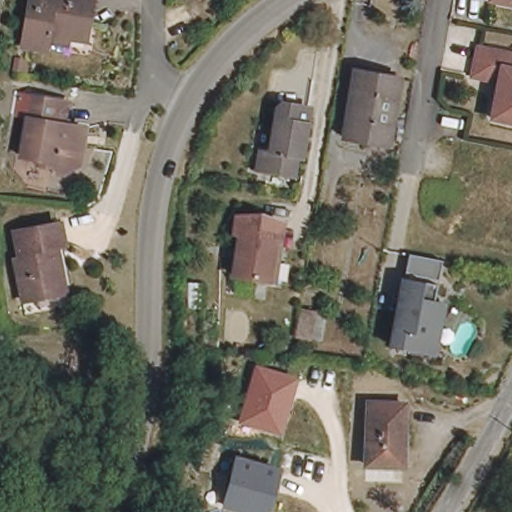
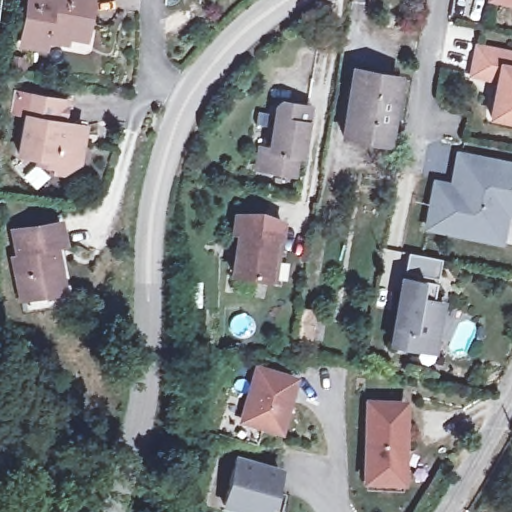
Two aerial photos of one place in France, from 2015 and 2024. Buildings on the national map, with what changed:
unchanged [(45,41),(45,48),(22,45),(29,0),(90,0),(85,36),(68,34),(66,45),(45,41)]
unchanged [(496,0),(512,0),(512,3),(496,0)]
unchanged [(512,48),(512,115),(490,111),(497,74),(470,69),(476,41),(512,48)]
unchanged [(347,140),(359,74),(401,81),(389,147),(347,140)]
unchanged [(25,155),(34,95),(72,101),(90,104),(87,125),(81,164),(25,155)]
unchanged [(280,175),(255,171),(257,151),(266,152),(273,114),(280,106),(305,110),(296,160),(292,159),(290,177),(280,175)]
new [(505,210),(498,240),(425,226),(435,182),(451,185),(454,173),(457,154),(512,164),(512,211),(505,210)]
unchanged [(255,277),(226,272),(234,230),(241,231),(245,215),(274,220),(271,236),(265,279),(255,277)]
unchanged [(55,291),(20,298),(13,258),(20,257),(15,230),(57,222),(61,242),(50,244),(51,251),(55,251),(58,268),(62,290),(55,291)]
unchanged [(440,258),(436,278),(403,271),(407,252),(440,258)]
unchanged [(433,352),(418,350),(390,344),(403,276),(436,282),(433,298),(440,300),(442,300),(433,352)]
unchanged [(325,299),(330,278),(340,280),(336,301),(325,299)]
unchanged [(300,338),(305,311),(321,313),(316,341),(300,338)]
unchanged [(248,365),(225,361),(228,350),(250,355),(248,365)]
unchanged [(297,375),(280,433),(239,423),(256,365),(297,375)]
unchanged [(401,465),(370,463),(372,402),(410,404),(408,441),(407,465),(401,465)]
unchanged [(267,512),(238,512),(221,508),(236,457),(280,470),(267,512)]

